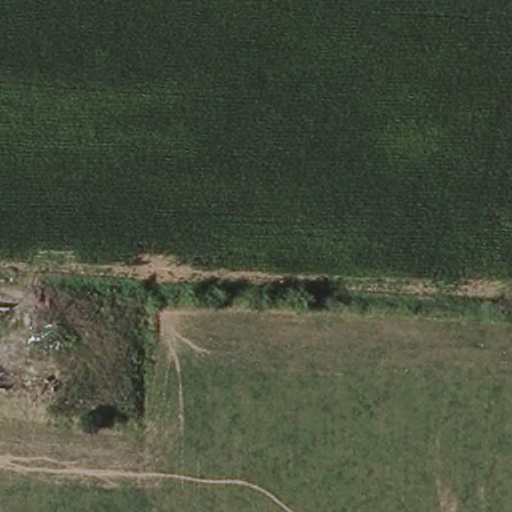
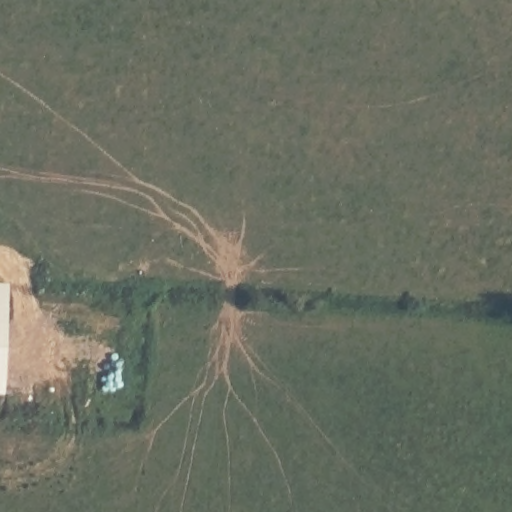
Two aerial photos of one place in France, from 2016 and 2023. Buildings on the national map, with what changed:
new [(8,297),(9,410),(0,410),(0,297),(8,297)]

